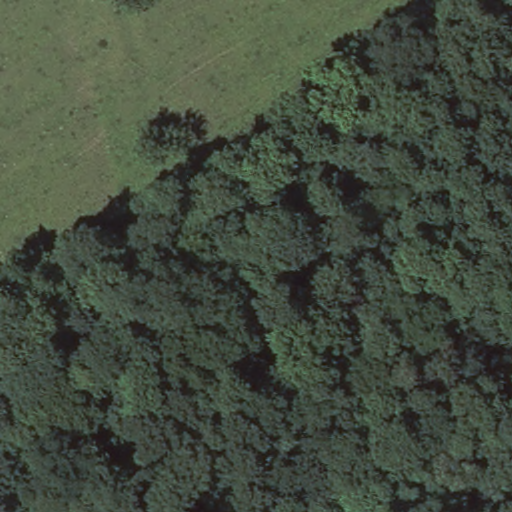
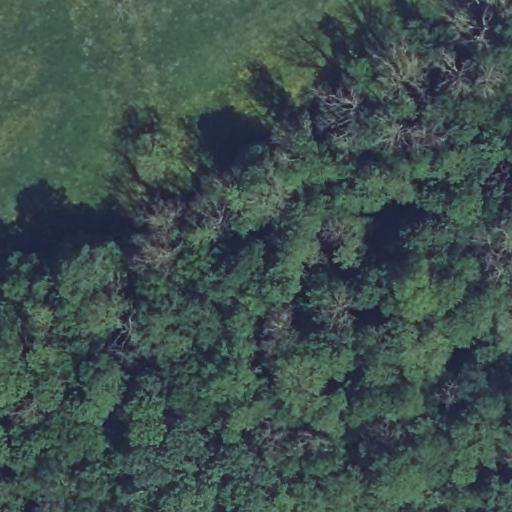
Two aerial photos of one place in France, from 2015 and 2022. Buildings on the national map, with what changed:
[]

